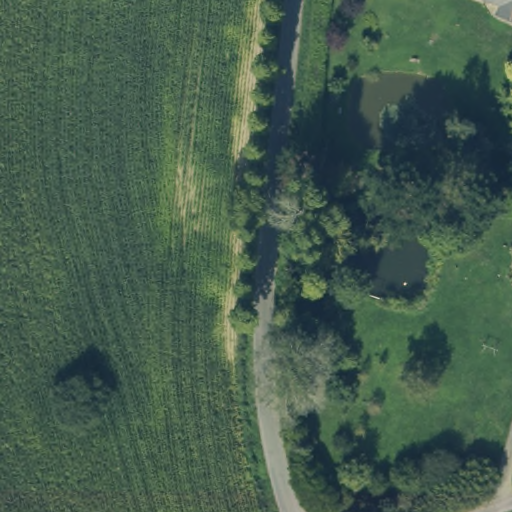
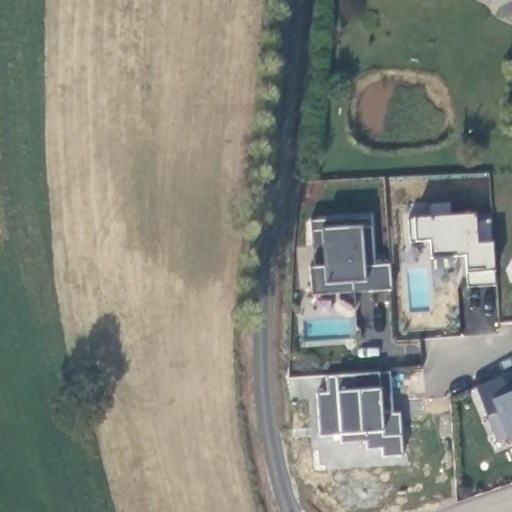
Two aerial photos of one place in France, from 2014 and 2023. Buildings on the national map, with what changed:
unchanged [(512,17),(495,10),(499,0),(512,0),(512,17)]
new [(310,267),(315,267),(311,220),(371,217),(375,265),(390,265),(391,290),(312,295),(310,267)]
new [(512,439),(507,441),(495,411),(485,416),(475,385),(512,371),(512,439)]
new [(382,450),(365,450),(365,443),(342,444),(340,436),(319,438),(315,391),(326,391),(325,376),(338,376),(378,373),(390,372),(393,414),(400,413),(403,457),(383,458),(382,450)]

